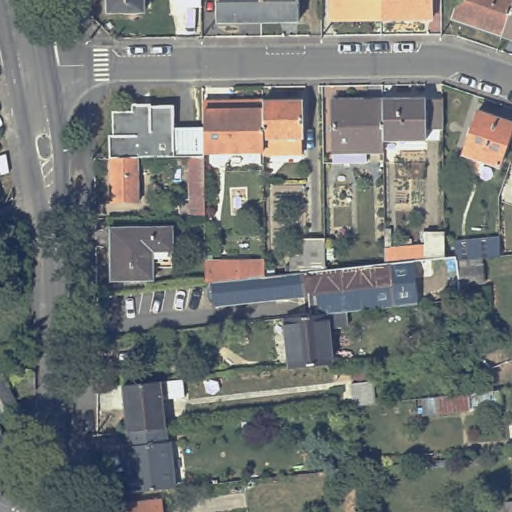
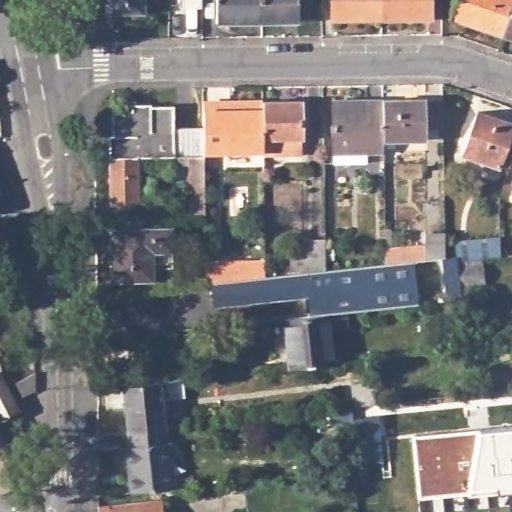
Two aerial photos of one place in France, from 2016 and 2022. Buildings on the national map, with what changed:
unchanged [(145,14),(107,14),(106,0),(144,0),(145,14)]
unchanged [(216,0),(261,0),(262,21),(217,22),(216,0)]
unchanged [(261,0),(298,0),(298,21),(262,21),(261,0)]
unchanged [(331,0),(382,0),(382,19),(332,20),(331,0)]
unchanged [(382,0),(431,0),(432,17),(382,19),(382,0)]
unchanged [(460,0),(512,0),(512,2),(501,36),(453,20),(460,0)]
unchanged [(512,2),(512,39),(501,36),(512,2)]
unchanged [(425,104),(442,103),(442,127),(442,132),(426,133),(426,144),(383,144),(382,104),(425,104)]
unchanged [(334,157),(333,104),(382,104),(383,144),(383,157),(334,157)]
unchanged [(204,115),(203,106),(229,106),(262,105),(263,142),(263,155),(204,157),(204,131),(204,115)]
unchanged [(300,105),(301,160),(263,161),(263,155),(263,142),(262,105),(300,105)]
unchanged [(109,139),(112,139),(112,117),(132,116),(141,125),(151,117),(151,109),(174,109),(174,131),(204,131),(204,157),(205,161),(189,162),(137,162),(109,162),(109,139)]
unchanged [(478,112),(512,124),(512,127),(497,167),(462,154),(478,112)]
unchanged [(205,161),(205,221),(179,222),(179,208),(189,207),(189,162),(205,161)]
unchanged [(138,207),(110,207),(109,162),(137,162),(138,207)]
unchanged [(110,228),(173,227),(174,261),(153,262),(154,278),(112,280),(110,228)]
unchanged [(381,248),(422,244),(422,230),(440,229),(440,256),(381,262),(381,248)]
unchanged [(262,276),(299,272),(299,237),(320,237),(321,269),(381,262),(440,256),(448,256),(447,243),(492,240),(493,249),(512,247),(512,255),(493,257),(450,261),(455,300),(445,301),(443,288),(410,291),(412,304),(325,312),(306,314),(303,294),(212,304),(209,281),(262,276)]
unchanged [(201,262),(261,261),(262,276),(209,281),(202,282),(201,262)]
unchanged [(282,317),(306,314),(325,312),(331,361),(330,362),(287,367),(287,366),(282,317)]
unchanged [(15,387),(35,377),(36,392),(22,401),(15,387)]
unchanged [(352,381),(374,379),(376,402),(354,404),(352,381)]
unchanged [(12,405),(16,412),(0,420),(0,380),(12,405)]
unchanged [(124,386),(162,382),(166,430),(128,434),(124,386)]
demolished [(422,417),(419,398),(499,391),(502,410),(422,417)]
new [(466,493),(417,496),(412,435),(477,428),(512,425),(512,487),(496,489),(466,493)]
unchanged [(127,449),(130,449),(128,434),(166,430),(167,445),(170,445),(176,492),(132,496),(127,449)]
unchanged [(25,487),(2,500),(0,496),(0,439),(25,487)]
demolished [(512,501),(512,512),(498,512),(497,502),(512,501)]
unchanged [(162,503),(164,512),(99,512),(100,511),(162,503)]

